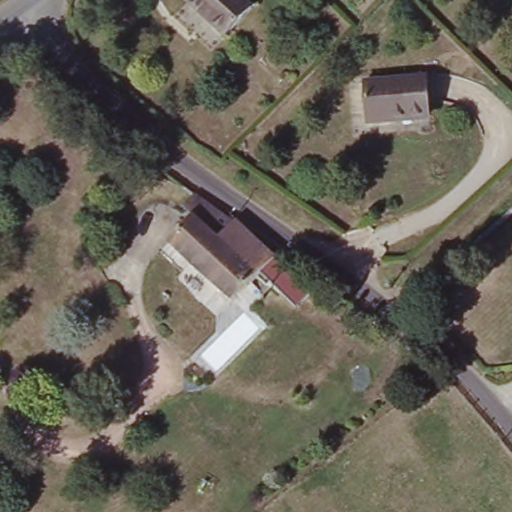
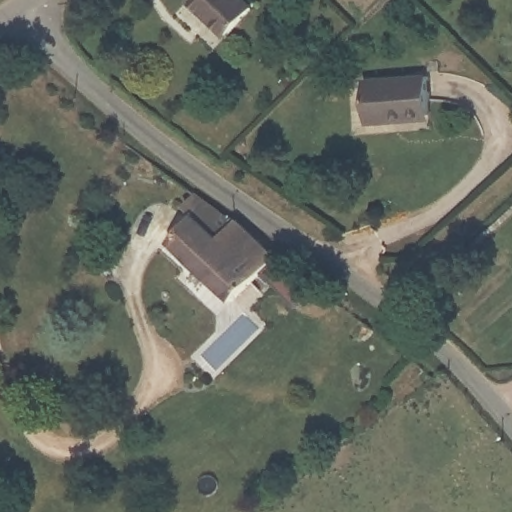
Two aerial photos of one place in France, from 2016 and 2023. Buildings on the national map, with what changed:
unchanged [(256,7),(230,35),(188,0),(248,0),(256,7)]
unchanged [(431,75),(434,114),(393,117),(394,123),(372,125),(370,79),(431,75)]
unchanged [(231,309),(170,239),(199,211),(224,239),(239,225),(276,267),(251,290),(231,309)]

